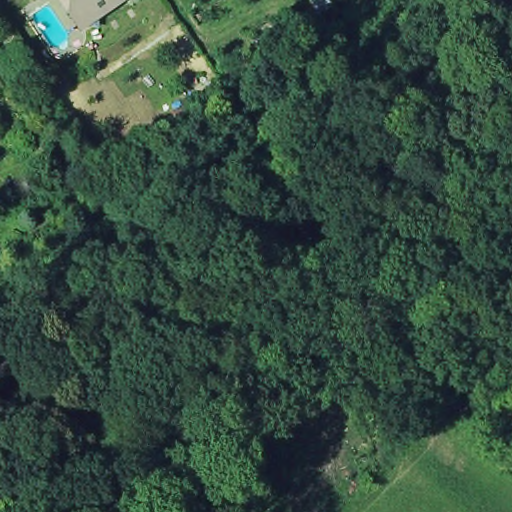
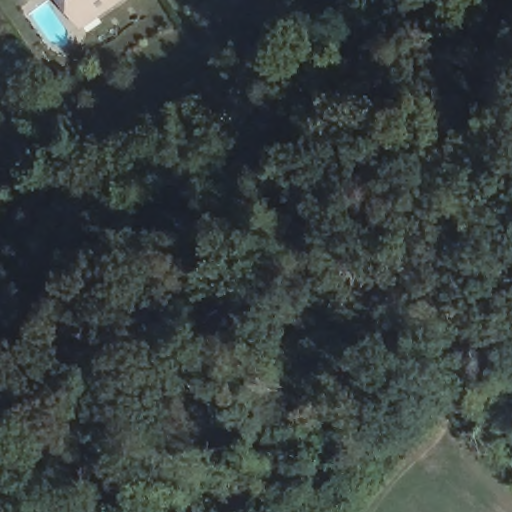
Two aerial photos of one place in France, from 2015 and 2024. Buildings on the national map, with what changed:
unchanged [(75,20),(61,0),(123,0),(112,7),(81,29),(75,20)]

